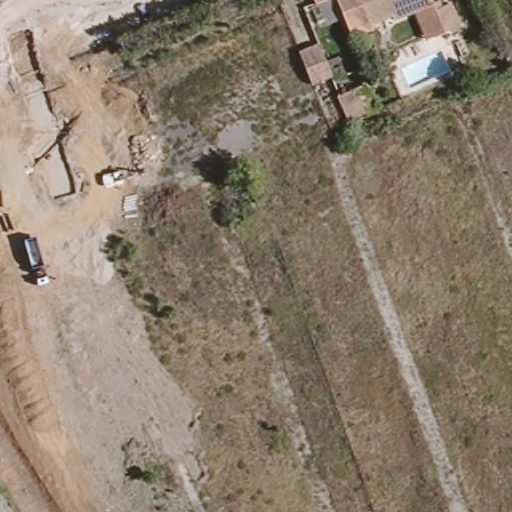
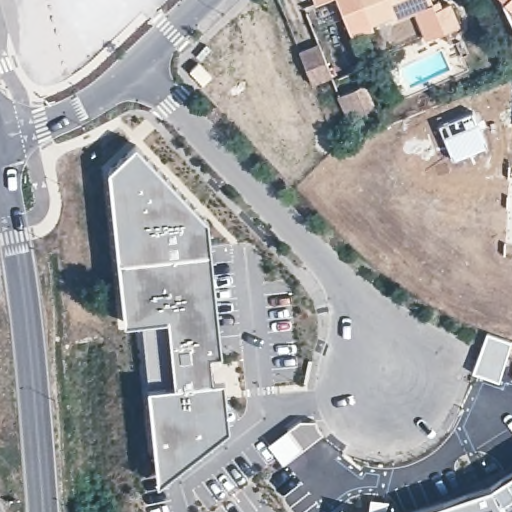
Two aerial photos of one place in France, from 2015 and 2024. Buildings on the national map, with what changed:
unchanged [(317,0),(324,0),(318,2),(317,0)]
unchanged [(426,11),(399,21),(397,15),(350,31),(337,0),(436,0),(439,7),(449,36),(436,40),(426,11)]
new [(512,0),(512,20),(503,0),(512,0)]
new [(326,45),(339,78),(319,85),(307,52),(326,45)]
unchanged [(372,87),(383,114),(353,125),(343,98),(372,87)]
new [(474,110),(488,145),(453,160),(437,124),(474,110)]
new [(146,320),(124,322),(110,169),(136,145),(207,221),(219,352),(209,353),(214,384),(223,381),(230,427),(158,482),(148,388),(150,388),(146,320)]
new [(512,340),(512,345),(499,382),(470,372),(486,330),(512,340)]
new [(283,465),(267,443),(299,419),(315,420),(322,433),(283,465)]
new [(417,507),(489,483),(512,469),(512,512),(400,512),(417,507)]
new [(348,507),(366,512),(347,512),(348,507)]

